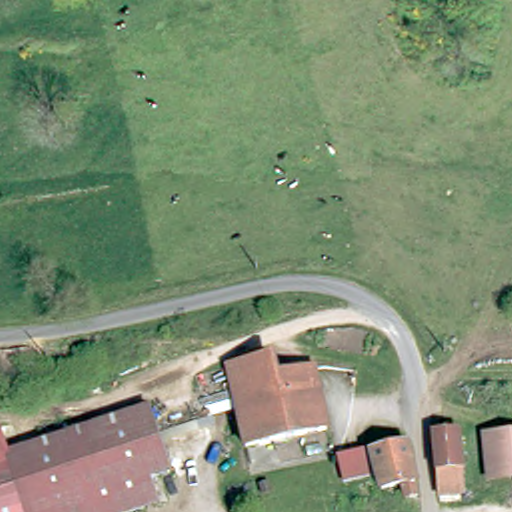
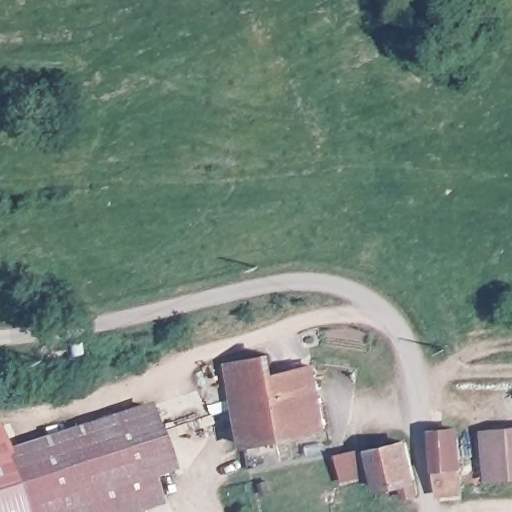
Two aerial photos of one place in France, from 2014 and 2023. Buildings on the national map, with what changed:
unchanged [(272,355),(277,377),(310,368),(325,431),(245,451),(236,403),(228,364),(272,355)]
unchanged [(152,406),(164,439),(173,470),(152,477),(160,502),(131,512),(28,512),(9,453),(152,406)]
unchanged [(0,429),(8,453),(9,453),(28,512),(0,512),(0,429)]
unchanged [(455,429),(461,466),(464,492),(447,495),(442,496),(436,455),(432,433),(455,429)]
unchanged [(490,468),(485,438),(512,434),(512,478),(492,481),(490,468)]
unchanged [(402,503),(398,488),(377,494),(372,473),(336,482),(332,458),(405,443),(418,496),(417,499),(402,503)]

